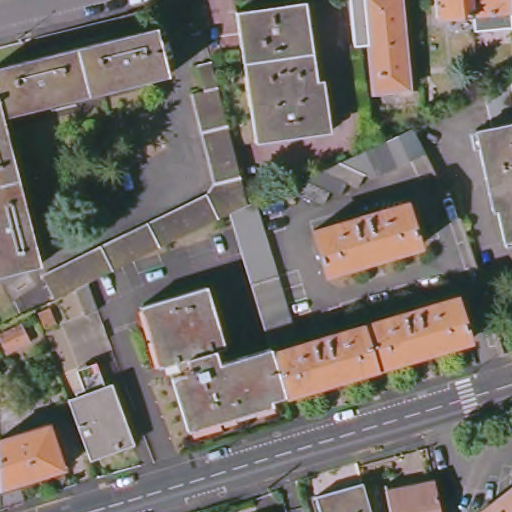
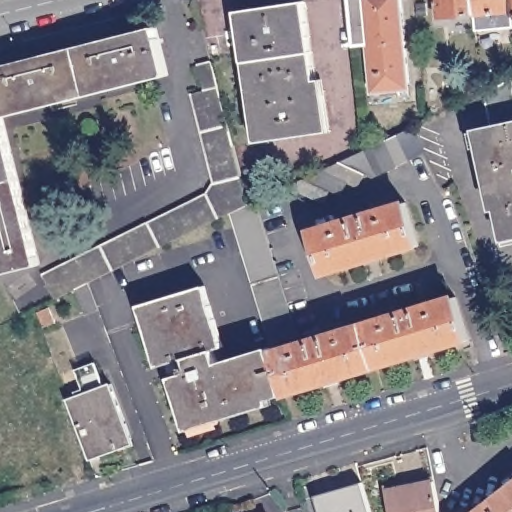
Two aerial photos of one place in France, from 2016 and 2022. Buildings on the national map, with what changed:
unchanged [(371,42),(359,43),(354,0),(403,0),(412,86),(376,89),(371,42)]
unchanged [(473,16),(437,18),(435,0),(471,0),(473,16)]
unchanged [(471,0),(512,0),(512,5),(512,11),(473,16),(471,0)]
unchanged [(239,11),(308,2),(321,90),(326,89),(333,131),(258,142),(239,11)]
unchanged [(168,76),(4,118),(39,262),(0,272),(0,66),(156,27),(168,76)]
unchanged [(249,205),(230,215),(89,283),(76,290),(55,300),(43,274),(201,197),(211,177),(191,91),(204,88),(198,64),(213,59),(249,205)]
unchanged [(512,85),(512,242),(505,244),(497,212),(493,213),(474,136),(492,133),(485,97),(512,85)]
unchanged [(366,151),(413,128),(427,155),(374,179),(366,175),(359,189),(348,183),(341,197),(331,192),(326,205),(288,188),(366,151)]
unchanged [(164,367),(146,305),(203,289),(219,352),(216,353),(221,367),(272,351),(265,329),(258,306),(230,215),(249,205),(256,202),(294,320),(301,344),(459,298),(471,341),(286,395),(186,425),(169,366),(164,367)]
unchanged [(314,232),(408,204),(420,247),(326,274),(314,232)]
demolished [(0,335),(23,327),(28,342),(5,351),(0,337),(0,335)]
unchanged [(68,403),(114,388),(135,447),(88,463),(68,403)]
demolished [(62,467),(21,481),(28,500),(3,508),(0,492),(0,438),(48,423),(62,467)]
unchanged [(361,483),(369,512),(319,512),(314,495),(361,483)]
unchanged [(393,512),(389,493),(435,483),(441,512),(393,512)]
unchanged [(481,512),(512,488),(512,512),(481,512)]

